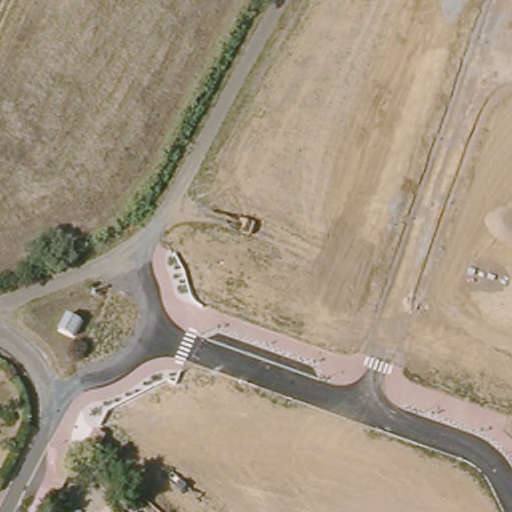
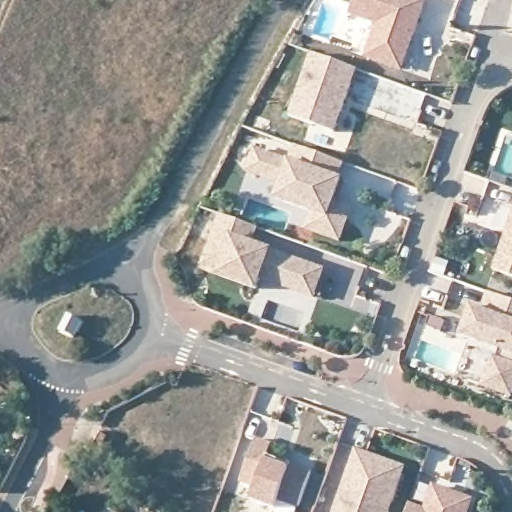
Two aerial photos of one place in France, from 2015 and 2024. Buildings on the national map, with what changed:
new [(364,59),(377,25),(351,15),(356,0),(426,0),(427,0),(403,73),(364,59)]
new [(291,116),(312,55),(357,70),(336,132),(291,116)]
new [(305,230),(310,212),(275,200),(281,185),(246,172),(255,147),(290,161),(293,146),(346,165),(340,180),(345,181),(337,201),(352,208),(340,244),(305,230)]
new [(262,279),(257,291),(217,277),(220,270),(202,265),(220,215),(260,230),(252,244),(274,250),(326,270),(315,300),(262,279)]
unchanged [(512,274),(495,267),(512,218),(512,274)]
new [(488,314),(495,295),(512,302),(512,398),(490,390),(500,361),(502,362),(506,352),(468,338),(478,310),(488,314)]
new [(275,446),(275,445),(290,450),(286,462),(293,465),(315,473),(301,510),(281,502),(278,510),(253,501),(258,489),(243,483),(258,440),(275,446)]
new [(334,512),(355,448),(408,467),(392,512),(334,512)]
new [(458,495),(477,502),(474,510),(473,512),(430,512),(440,488),(458,495)]
unchanged [(116,512),(103,512),(108,505),(116,512)]
new [(430,512),(412,512),(414,506),(430,512)]

